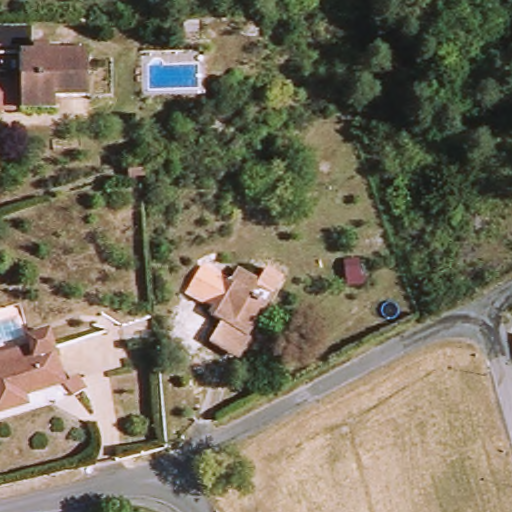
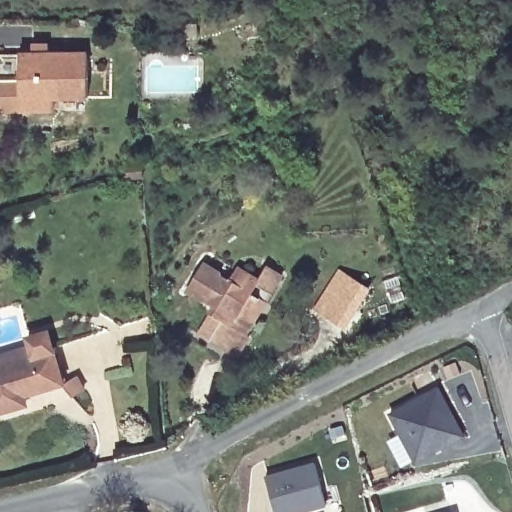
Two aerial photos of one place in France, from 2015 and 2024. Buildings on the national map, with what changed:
unchanged [(87,104),(56,102),(54,117),(18,117),(18,57),(30,57),(31,47),(48,47),(47,57),(87,57),(87,104)]
unchanged [(210,346),(221,325),(209,317),(212,311),(202,305),(185,295),(199,268),(216,278),(231,286),(237,273),(256,283),(263,269),(278,277),(263,306),(246,338),(248,340),(237,361),(225,353),(210,346)]
new [(344,323),(321,310),(315,307),(336,271),(342,273),(365,287),(344,323)]
unchanged [(0,354),(47,339),(52,356),(0,372),(0,354)]
unchanged [(62,388),(22,401),(25,412),(0,420),(0,372),(52,356),(62,388)]
new [(438,388),(464,436),(417,462),(391,413),(438,388)]
new [(323,502),(291,512),(272,512),(262,476),(312,461),(323,502)]
new [(442,498),(447,512),(422,512),(420,505),(442,498)]

